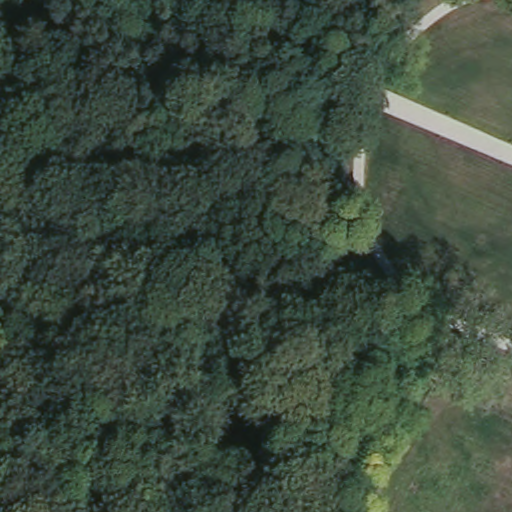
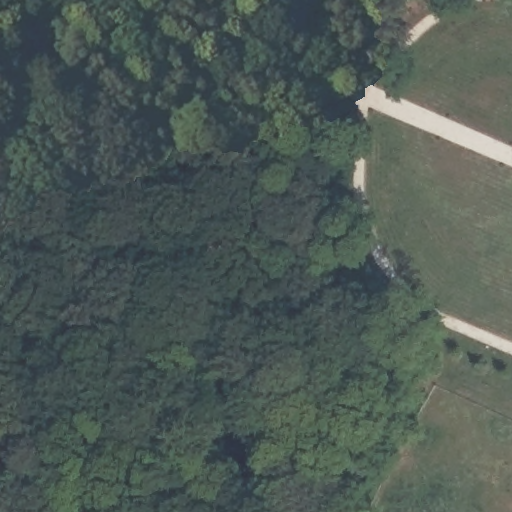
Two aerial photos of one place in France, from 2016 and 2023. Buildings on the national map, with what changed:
[]

